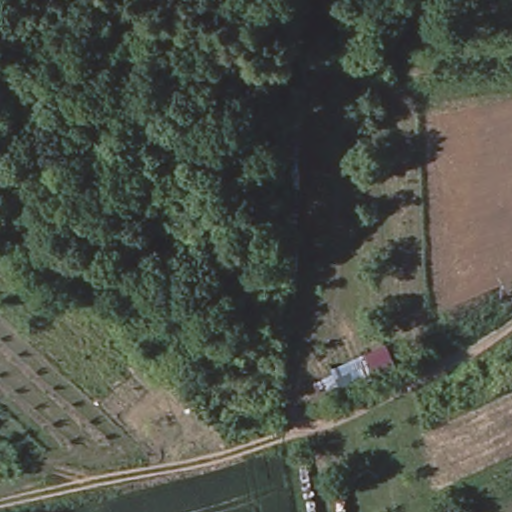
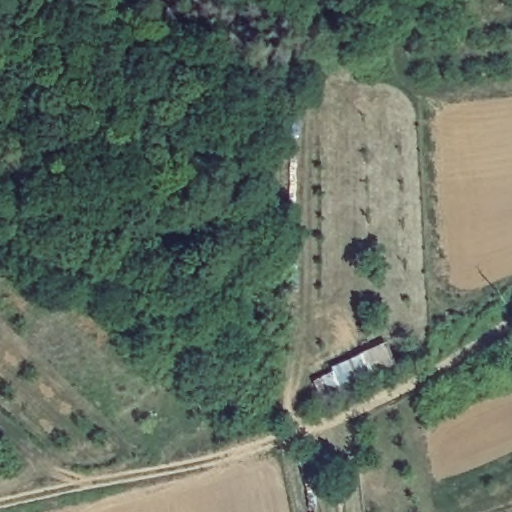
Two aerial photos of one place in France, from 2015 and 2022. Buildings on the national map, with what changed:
[]

